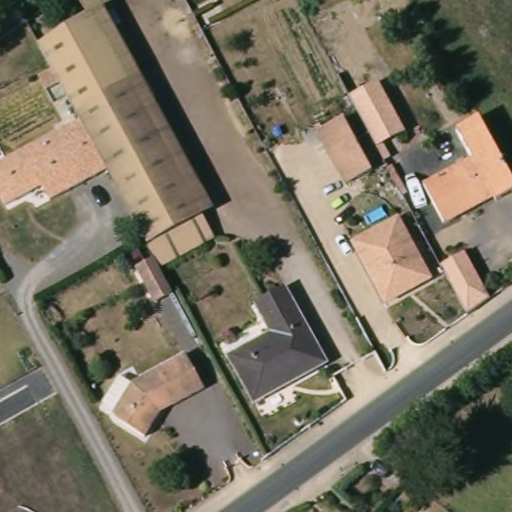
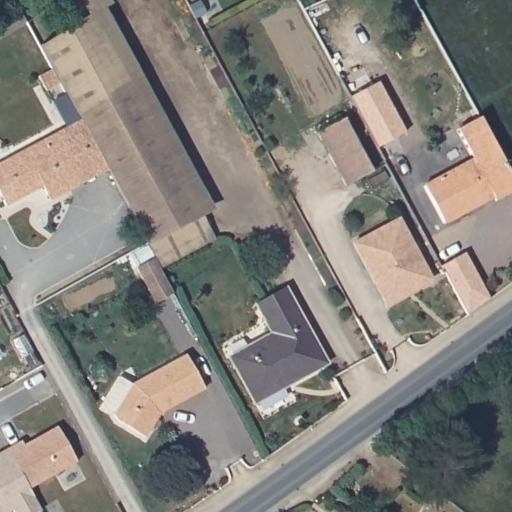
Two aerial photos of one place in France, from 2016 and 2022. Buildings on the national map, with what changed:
unchanged [(77,0),(109,0),(113,6),(88,20),(77,0)]
unchanged [(35,48),(88,20),(210,238),(156,269),(171,297),(153,306),(135,272),(152,263),(144,247),(35,48)]
unchanged [(378,85),(402,131),(374,145),(349,99),(378,85)]
unchanged [(340,119),(368,171),(340,186),(312,134),(340,119)]
unchanged [(475,163),(457,131),(478,119),(512,180),(512,195),(497,202),(494,198),(443,227),(423,190),(475,163)]
unchanged [(50,202),(41,189),(7,206),(0,193),(0,165),(55,135),(82,184),(50,202)]
unchanged [(399,221),(431,278),(385,303),(354,245),(399,221)]
unchanged [(468,254),(494,301),(471,318),(443,266),(468,254)]
unchanged [(264,336),(248,305),(278,288),(318,364),(248,401),(224,357),(264,336)]
unchanged [(199,389),(155,413),(143,434),(116,421),(111,411),(102,406),(100,401),(115,374),(128,381),(180,355),(199,389)]
new [(56,426),(76,460),(28,487),(9,453),(56,426)]
new [(43,512),(0,512),(0,458),(9,453),(43,512)]

